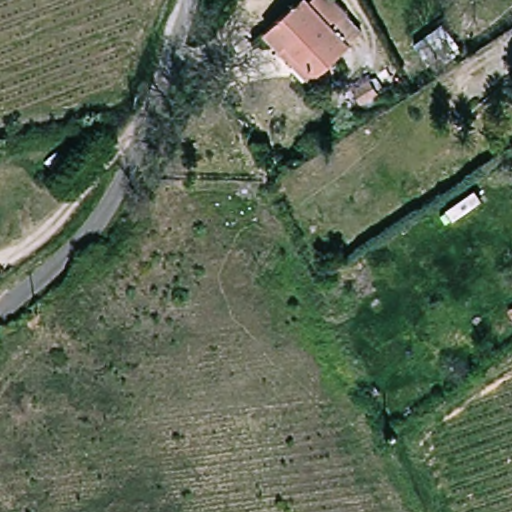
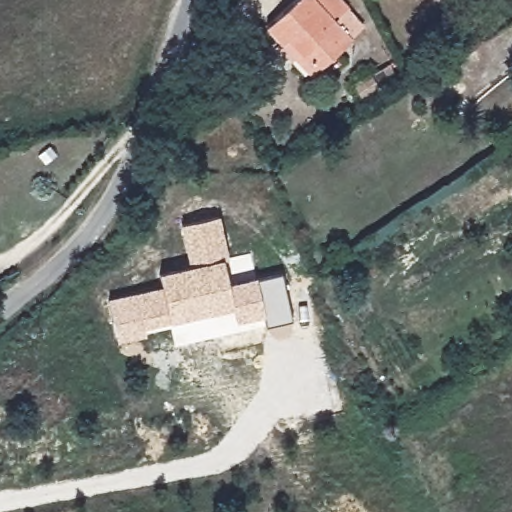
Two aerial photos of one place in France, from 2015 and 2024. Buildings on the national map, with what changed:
unchanged [(269,38),(308,0),(310,0),(314,4),(317,0),(342,0),(358,16),(351,23),(341,15),(334,21),(356,47),(326,75),(315,86),(286,55),(269,38)]
new [(265,325),(263,316),(236,322),(232,307),(168,321),(144,327),(146,336),(116,342),(107,295),(161,284),(158,271),(188,265),(178,221),(218,213),(228,256),(222,258),(228,281),(254,276),(255,278),(281,273),(292,320),(265,325)]

